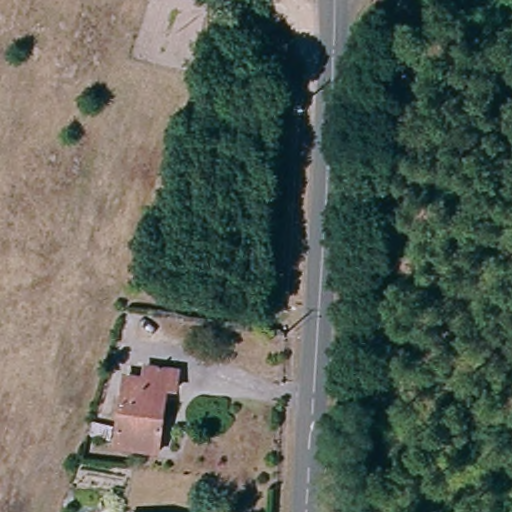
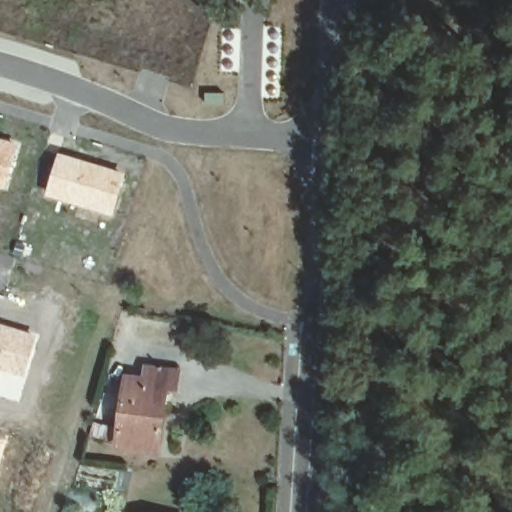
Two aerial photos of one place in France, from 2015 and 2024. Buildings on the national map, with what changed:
new [(7,189),(0,187),(0,137),(20,143),(7,189)]
new [(125,176),(113,215),(46,195),(58,155),(125,176)]
new [(27,377),(3,369),(0,377),(0,323),(39,334),(27,377)]
unchanged [(119,383),(141,384),(142,372),(175,374),(171,399),(159,398),(152,451),(111,447),(119,383)]
new [(0,469),(0,437),(9,440),(0,469)]

